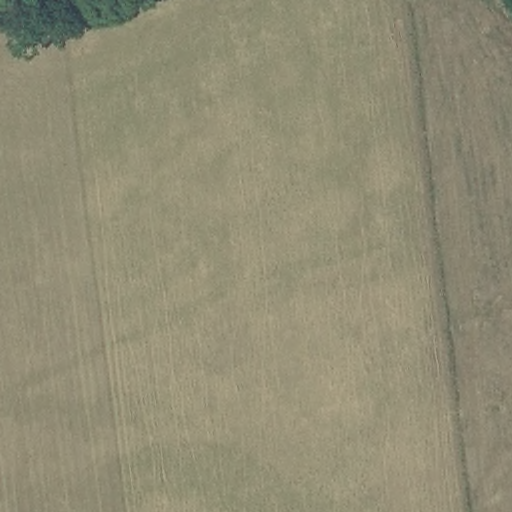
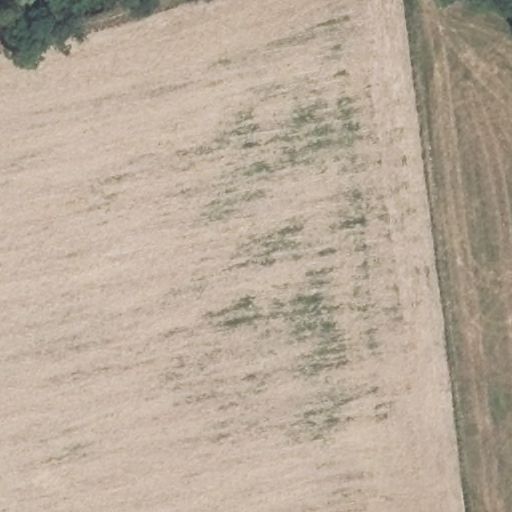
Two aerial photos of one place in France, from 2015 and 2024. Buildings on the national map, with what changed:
unchanged [(486,464),(465,467),(461,452),(483,446),(486,464)]

